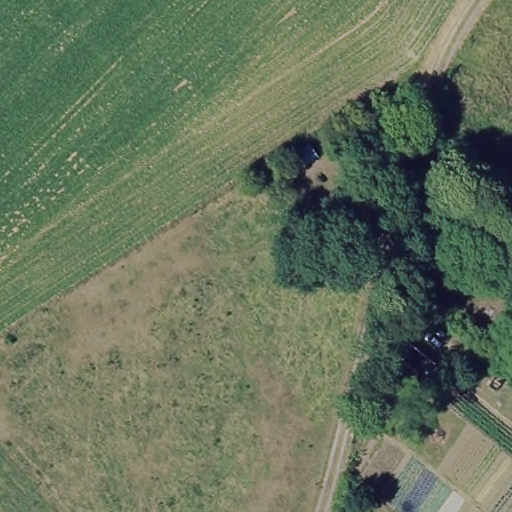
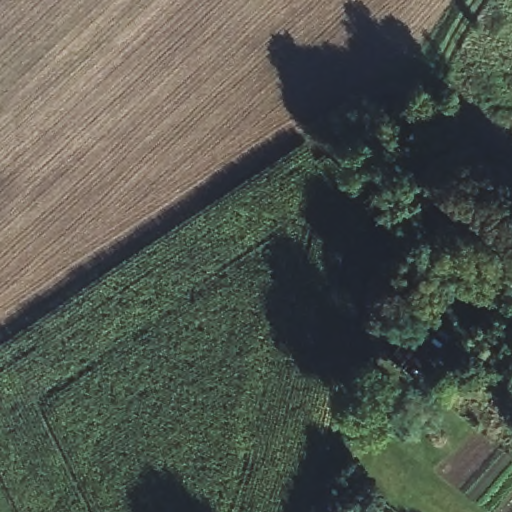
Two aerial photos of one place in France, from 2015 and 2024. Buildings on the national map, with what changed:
unchanged [(403,341),(435,366),(419,386),(388,360),(403,341)]

